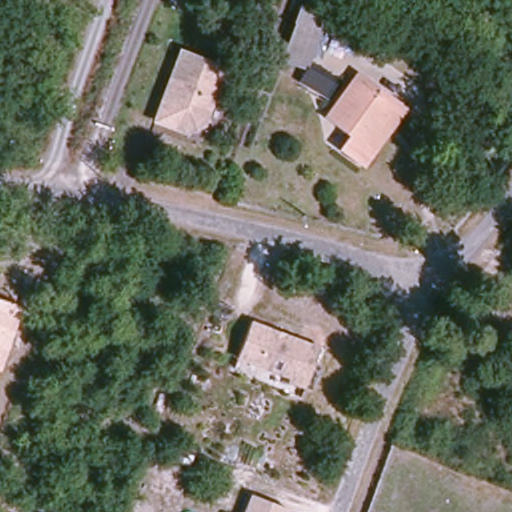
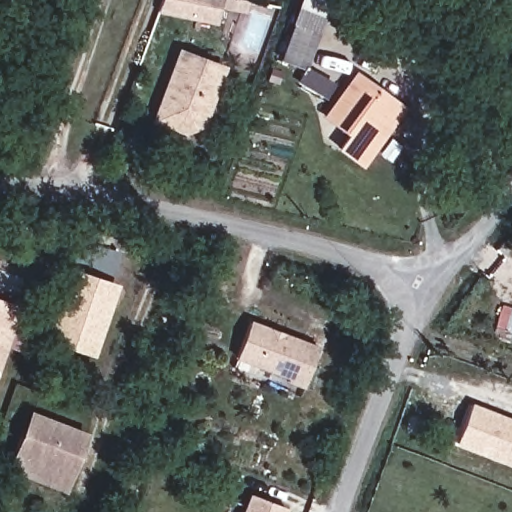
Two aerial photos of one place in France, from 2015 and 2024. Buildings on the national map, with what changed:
new [(250,0),(247,14),(221,9),(219,24),(160,13),(164,0),(250,0)]
unchanged [(315,55),(307,69),(285,61),(303,4),(335,13),(326,56),(315,55)]
unchanged [(207,129),(191,135),(160,125),(184,54),(227,70),(207,129)]
unchanged [(346,149),(355,134),(329,116),(356,71),(406,106),(371,164),(346,149)]
new [(49,339),(67,290),(72,275),(111,290),(105,305),(87,354),(49,339)]
unchanged [(0,300),(21,308),(0,371),(0,300)]
unchanged [(307,387),(292,382),(293,377),(239,362),(249,325),(320,346),(307,387)]
new [(512,418),(512,466),(457,445),(473,403),(512,418)]
new [(10,472),(32,411),(90,434),(67,493),(10,472)]
unchanged [(279,512),(240,512),(250,489),(283,503),(279,512)]

